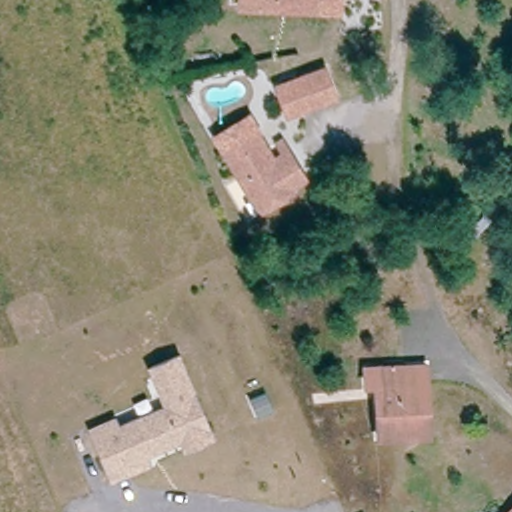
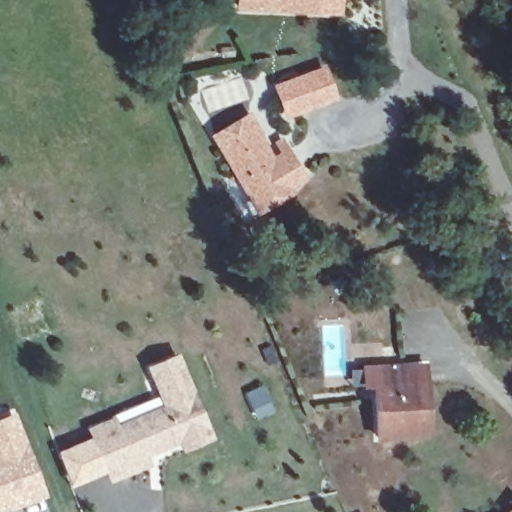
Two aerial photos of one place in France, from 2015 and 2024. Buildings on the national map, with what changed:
unchanged [(327,14),(235,12),(236,0),(336,0),(336,14),(327,14)]
unchanged [(323,72),(334,101),(286,119),(276,90),(323,72)]
unchanged [(288,190),(290,194),(250,219),(243,206),(250,201),(222,153),(255,133),(272,162),(287,154),(295,167),(303,181),(288,190)]
unchanged [(145,462),(109,478),(89,427),(111,418),(115,426),(165,404),(149,364),(175,352),(210,435),(182,447),(178,437),(142,453),(145,462)]
unchanged [(373,442),(371,389),(362,389),(361,367),(401,367),(422,367),(423,422),(423,441),(373,442)]
new [(49,497),(8,512),(0,512),(0,417),(15,410),(49,497)]
unchanged [(512,506),(512,512),(506,512),(512,506)]

